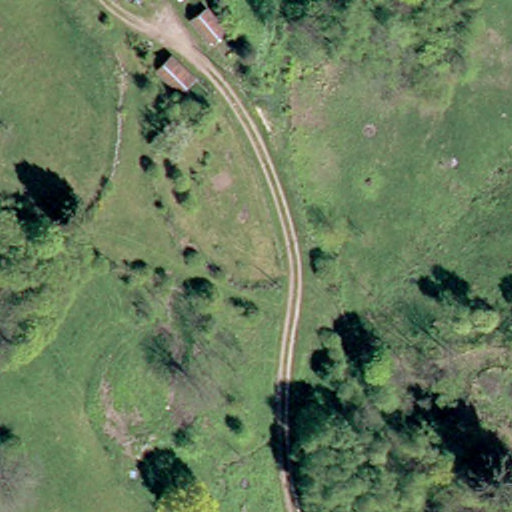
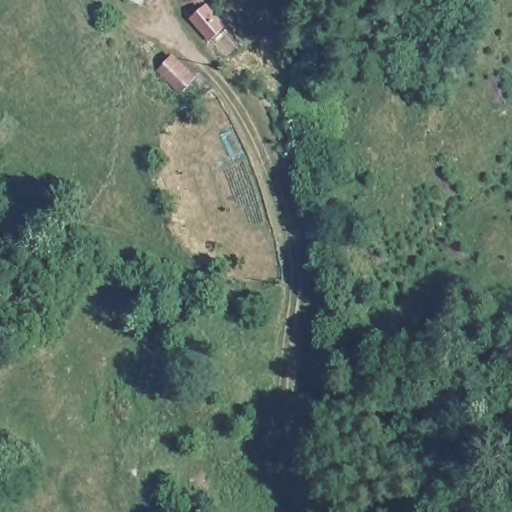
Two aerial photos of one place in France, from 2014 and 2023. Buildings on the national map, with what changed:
unchanged [(210,0),(228,22),(211,36),(193,14),(210,0)]
unchanged [(190,76),(170,90),(153,65),(167,56),(172,52),(182,66),(190,76)]

